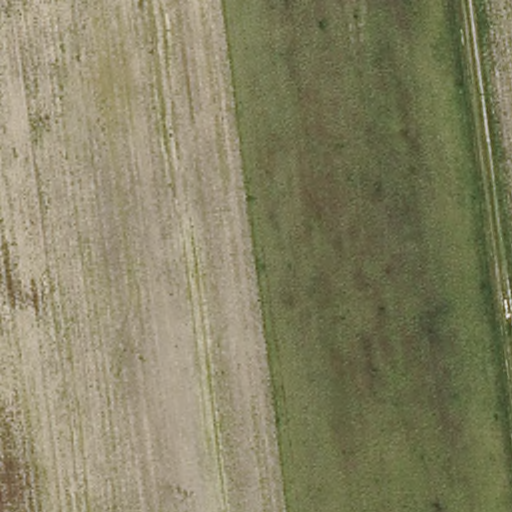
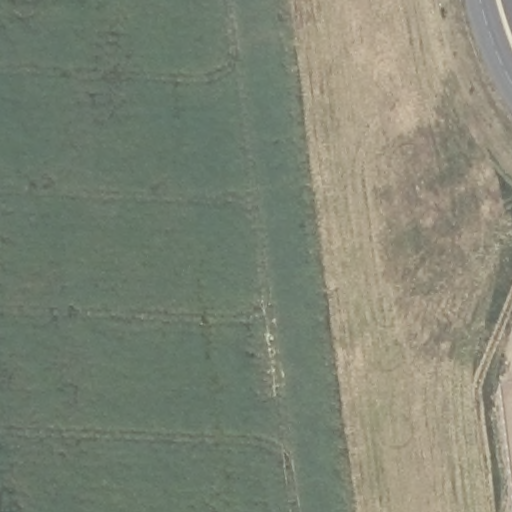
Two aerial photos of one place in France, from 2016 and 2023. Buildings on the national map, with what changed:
[]

